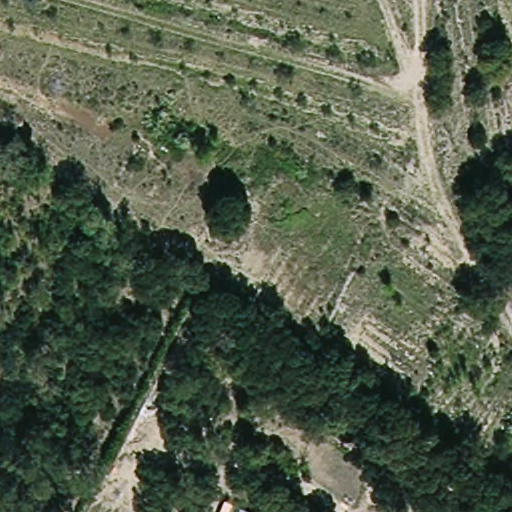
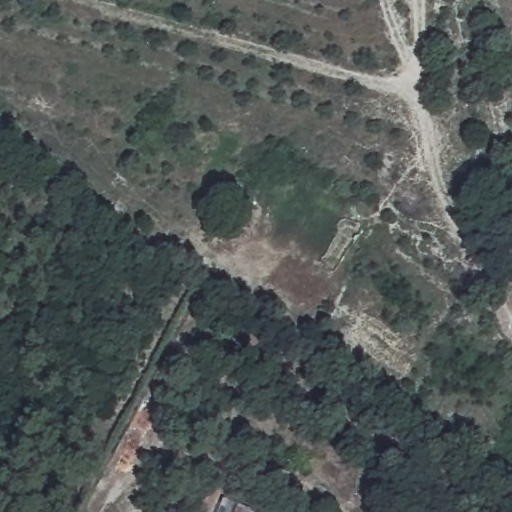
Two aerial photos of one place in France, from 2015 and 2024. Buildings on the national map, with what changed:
unchanged [(254,511),(254,512),(229,512),(234,501),(254,511)]

